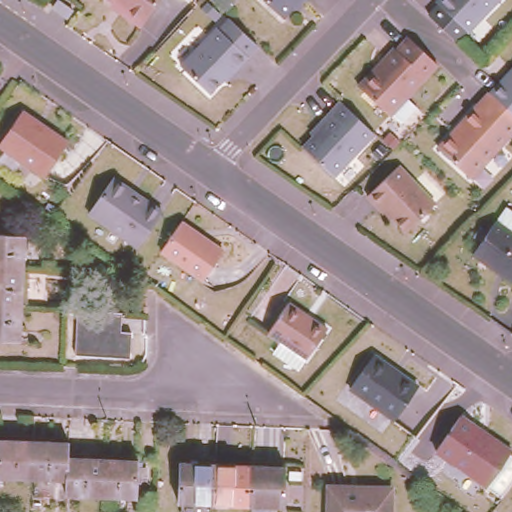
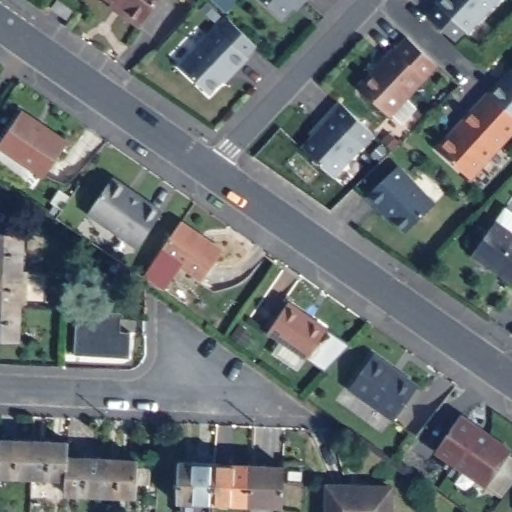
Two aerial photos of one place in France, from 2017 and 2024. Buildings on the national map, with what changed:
unchanged [(73,11),(67,20),(61,16),(62,15),(52,9),(58,0),(73,11)]
unchanged [(120,15),(123,10),(108,0),(160,0),(140,29),(120,15)]
unchanged [(309,0),(305,5),(301,1),(282,22),(258,0),(309,0)]
unchanged [(438,2),(441,0),(500,0),(471,32),(438,2)]
unchanged [(222,80),(208,94),(180,66),(216,28),(247,58),(236,70),(225,82),(222,80)]
unchanged [(435,61),(388,113),(356,85),(391,46),(393,47),(405,35),(435,61)]
unchanged [(512,117),(488,95),(500,81),(512,69),(512,117)]
unchanged [(512,133),(468,179),(436,149),(488,95),(512,117),(512,133)]
unchanged [(307,144),(318,132),(315,129),(324,120),(336,107),(370,140),(338,173),(307,144)]
unchanged [(65,141),(41,175),(0,145),(0,138),(20,109),(65,141)]
unchanged [(372,209),(361,197),(392,167),(430,205),(400,233),(386,219),(385,221),(372,209)]
unchanged [(87,205),(110,172),(131,187),(133,185),(161,205),(136,240),(87,205)]
unchanged [(222,250),(202,278),(160,249),(180,220),(222,250)]
unchanged [(512,240),(512,281),(507,287),(468,256),(492,225),(512,240)]
unchanged [(21,234),(20,271),(0,270),(0,233),(21,234)]
unchanged [(20,271),(18,305),(0,305),(0,270),(20,271)]
unchanged [(324,321),(303,351),(265,325),(286,295),(324,321)]
unchanged [(17,341),(0,341),(0,305),(18,305),(17,341)]
unchanged [(127,340),(86,338),(88,308),(128,309),(127,340)]
unchanged [(374,355),(417,388),(388,421),(345,390),(374,355)]
unchanged [(458,418),(508,453),(485,488),(434,453),(458,418)]
unchanged [(0,473),(0,433),(30,435),(28,474),(0,473)]
unchanged [(28,474),(30,435),(61,437),(60,450),(60,475),(28,474)]
unchanged [(93,452),(92,492),(59,490),(60,475),(60,450),(93,452)]
unchanged [(130,453),(128,493),(92,492),(93,452),(130,453)]
unchanged [(171,501),(173,460),(207,461),(206,502),(171,501)]
unchanged [(245,463),(243,505),(206,502),(207,461),(245,463)]
unchanged [(281,465),(280,506),(243,505),(245,463),(281,465)]
unchanged [(321,477),(383,480),(382,512),(321,512),(321,477)]

